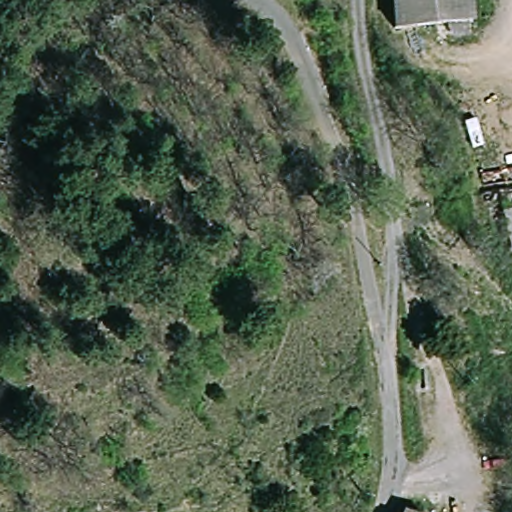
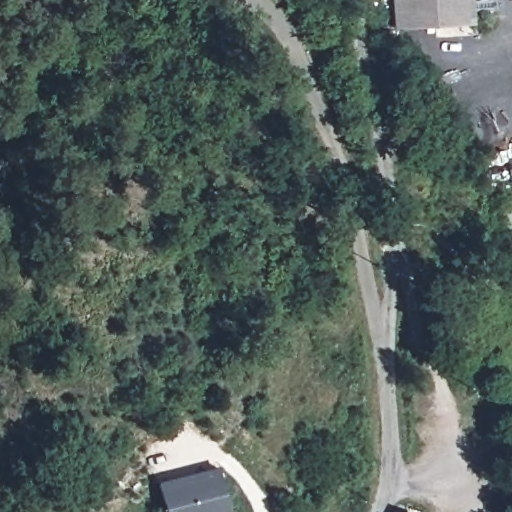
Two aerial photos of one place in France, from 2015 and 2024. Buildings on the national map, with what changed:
unchanged [(471,0),(471,28),(396,23),(397,1),(425,0),(471,0)]
unchanged [(425,0),(397,1),(397,0),(425,0)]
demolished [(444,276),(464,274),(470,308),(450,310),(444,276)]
new [(161,481),(221,466),(231,508),(219,512),(218,512),(167,512),(161,481)]

